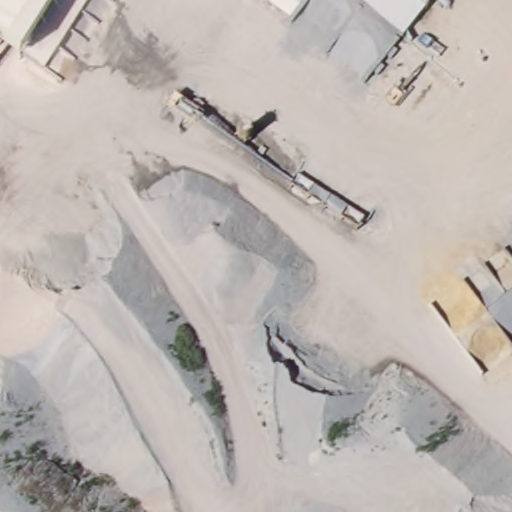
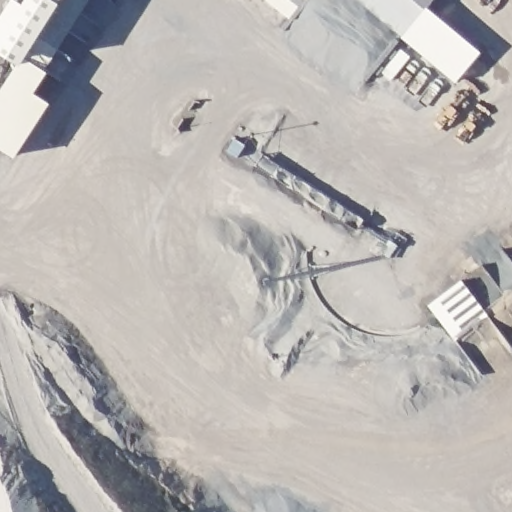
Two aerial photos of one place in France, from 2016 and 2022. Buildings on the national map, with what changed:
unchanged [(0,57),(0,15),(9,0),(19,0),(21,2),(22,0),(61,0),(18,67),(0,57)]
unchanged [(405,37),(359,0),(410,0),(425,13),(405,37)]
unchanged [(410,0),(435,0),(425,13),(410,0)]
new [(482,51),(455,81),(405,37),(425,13),(430,7),(482,51)]
new [(47,71),(34,91),(51,103),(15,157),(0,148),(0,94),(18,67),(24,58),(47,71)]

